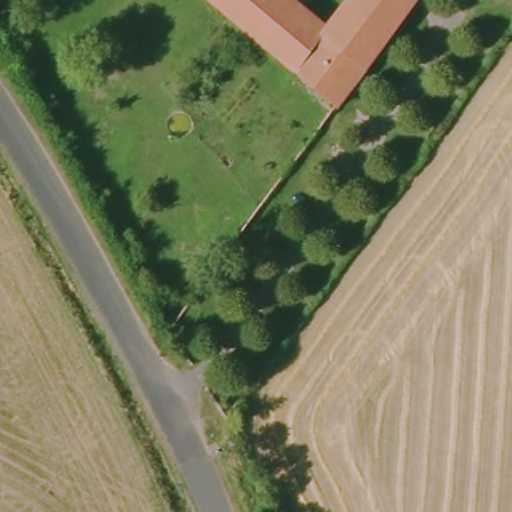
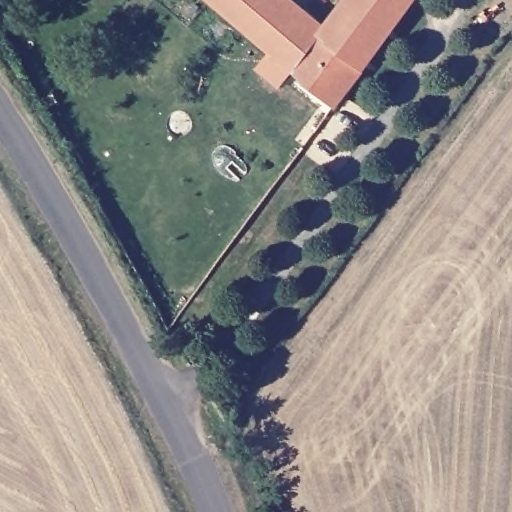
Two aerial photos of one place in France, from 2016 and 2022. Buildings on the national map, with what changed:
unchanged [(334,0),(402,0),(323,110),(219,0),(291,0),(314,25),(334,0)]

